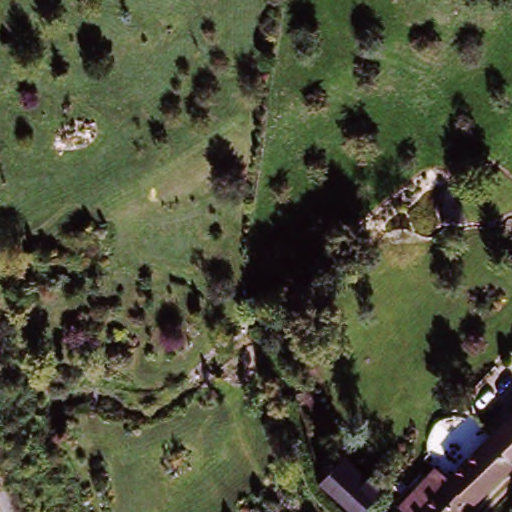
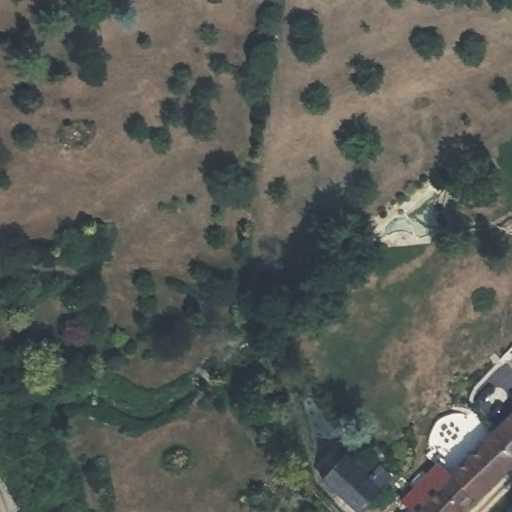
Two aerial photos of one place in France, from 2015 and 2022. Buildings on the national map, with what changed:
unchanged [(512,421),(512,464),(461,512),(419,512),(457,472),(512,421)]
unchanged [(391,499),(378,512),(357,512),(318,474),(341,451),(391,499)]

